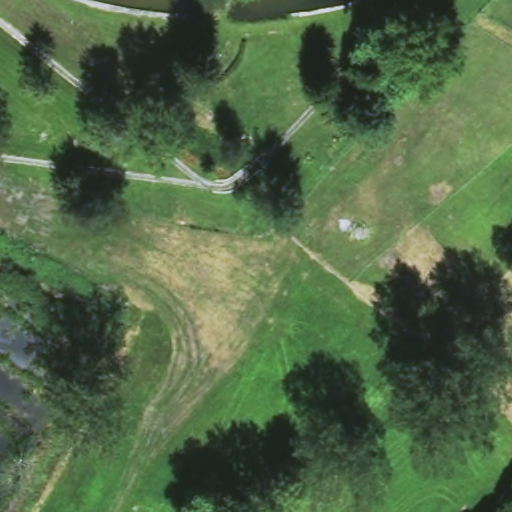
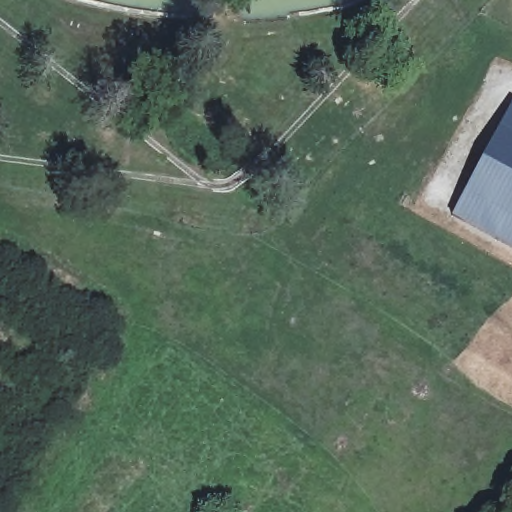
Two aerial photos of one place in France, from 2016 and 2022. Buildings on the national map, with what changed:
new [(512,108),(512,244),(455,212),(512,108)]

